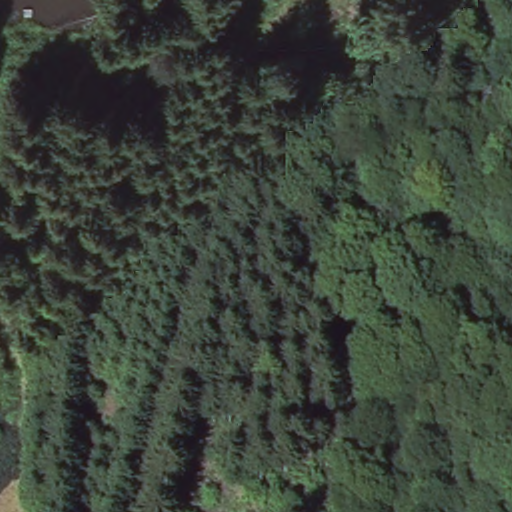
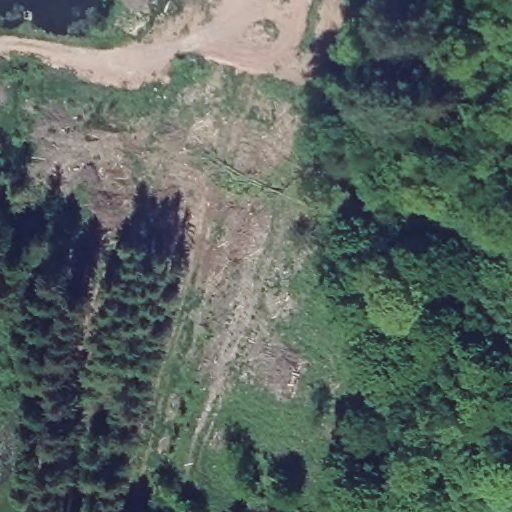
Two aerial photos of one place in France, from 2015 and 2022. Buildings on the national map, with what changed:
[]

